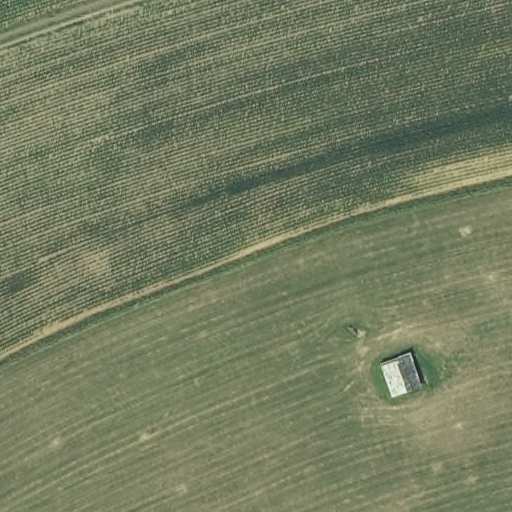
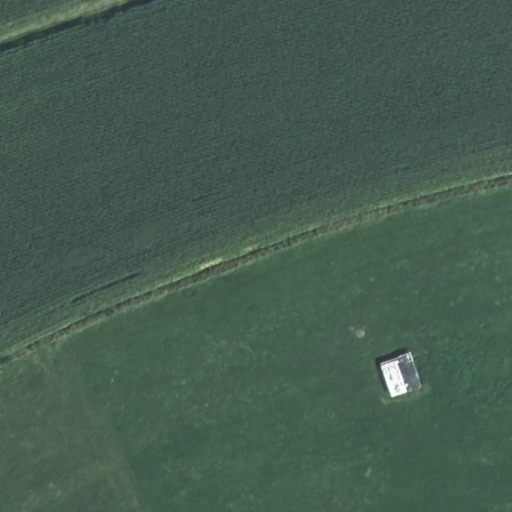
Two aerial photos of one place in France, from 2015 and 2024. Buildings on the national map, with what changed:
unchanged [(414,353),(426,390),(390,400),(380,364),(414,353)]

